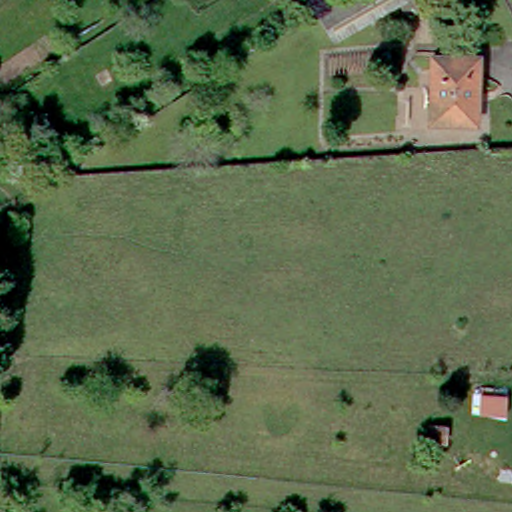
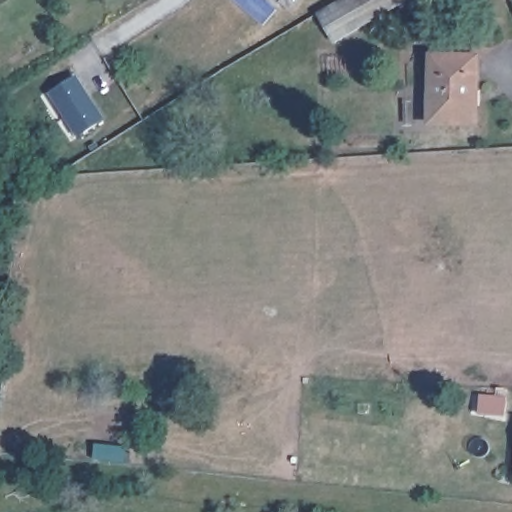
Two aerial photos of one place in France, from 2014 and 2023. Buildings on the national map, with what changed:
unchanged [(337,0),(419,0),(423,8),(407,17),(399,4),(335,40),(318,15),(316,12),(337,0)]
unchanged [(476,58),(476,125),(429,124),(430,58),(476,58)]
new [(78,73),(108,119),(79,138),(51,93),(78,73)]

